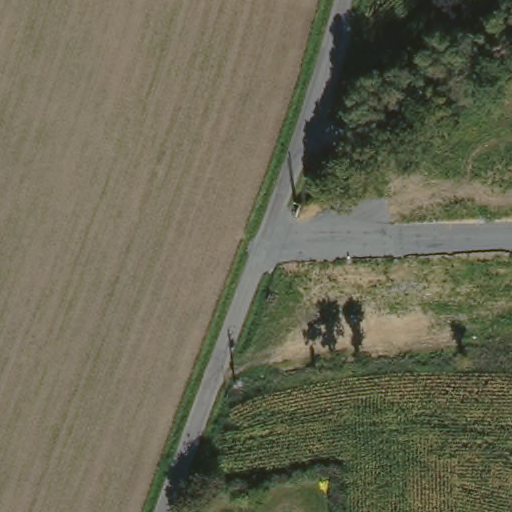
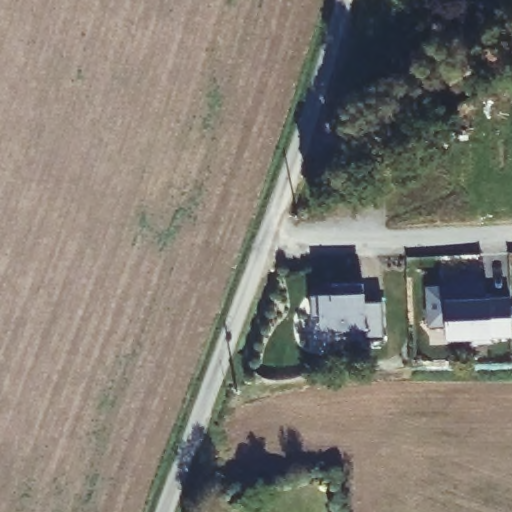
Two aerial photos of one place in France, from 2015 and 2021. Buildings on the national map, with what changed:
new [(331,282),(362,280),(363,300),(382,300),(382,307),(384,337),(364,338),(364,332),(337,333),(337,326),(320,327),(319,315),(310,316),(309,292),(331,292),(331,282)]
new [(449,282),(457,282),(480,281),(481,298),(508,297),(510,336),(490,337),(490,342),(471,342),(470,337),(445,339),(444,325),(427,326),(425,288),(449,287),(449,282)]

